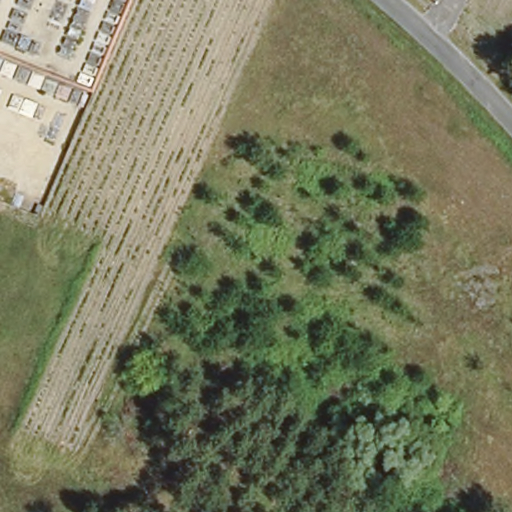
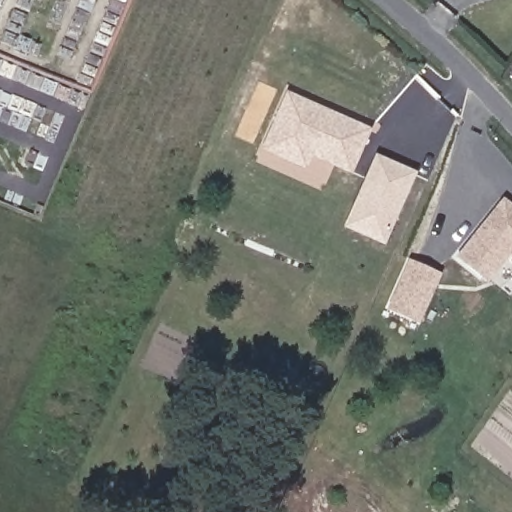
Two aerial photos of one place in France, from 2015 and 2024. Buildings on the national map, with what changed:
new [(305,170),(261,149),(285,91),(371,129),(350,175),(310,157),(305,170)]
new [(383,246),(343,227),(376,154),(417,172),(383,246)]
new [(454,257),(501,198),(512,206),(512,258),(508,255),(486,281),(454,257)]
new [(418,325),(386,310),(407,260),(440,273),(418,325)]

